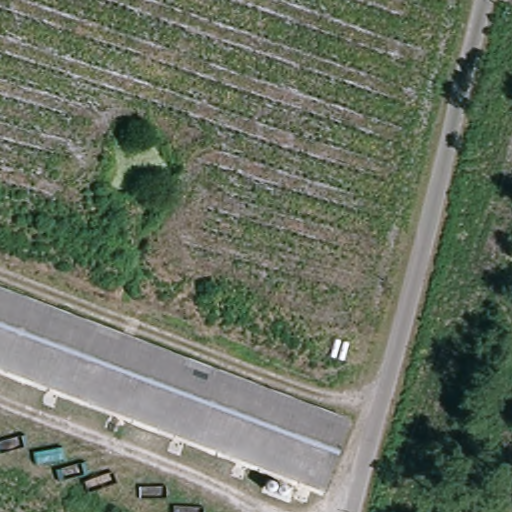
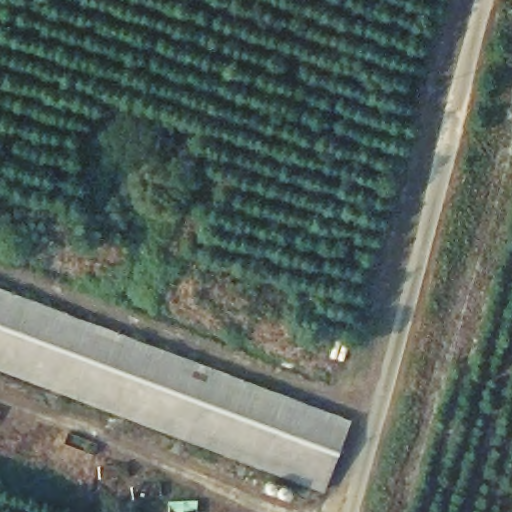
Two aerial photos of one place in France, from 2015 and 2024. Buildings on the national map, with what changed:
unchanged [(319,482),(0,364),(0,295),(341,424),(319,482)]

